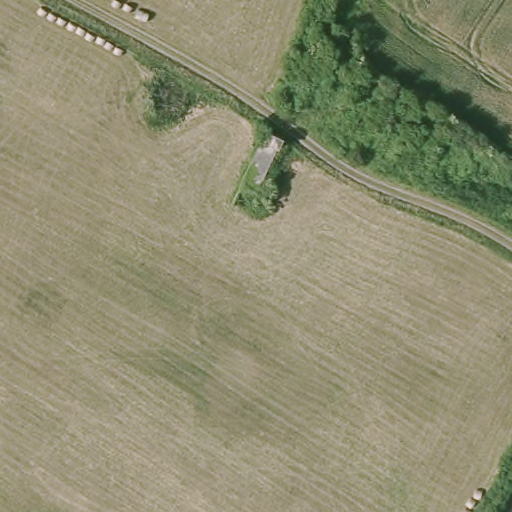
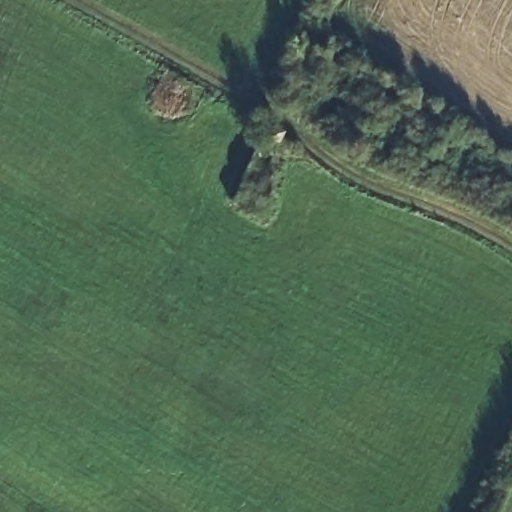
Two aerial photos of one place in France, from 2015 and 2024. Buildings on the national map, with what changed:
unchanged [(261,129),(282,137),(258,190),(238,180),(261,129)]

